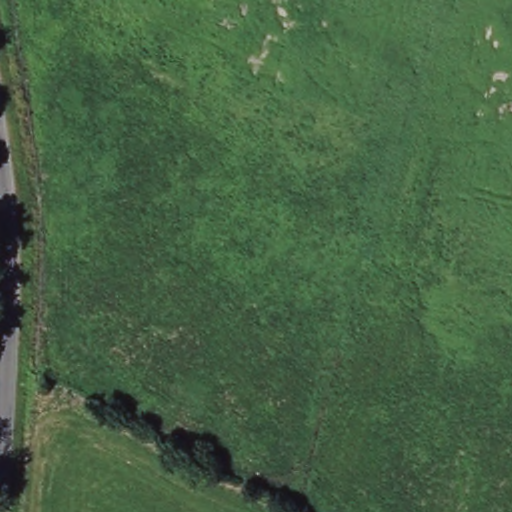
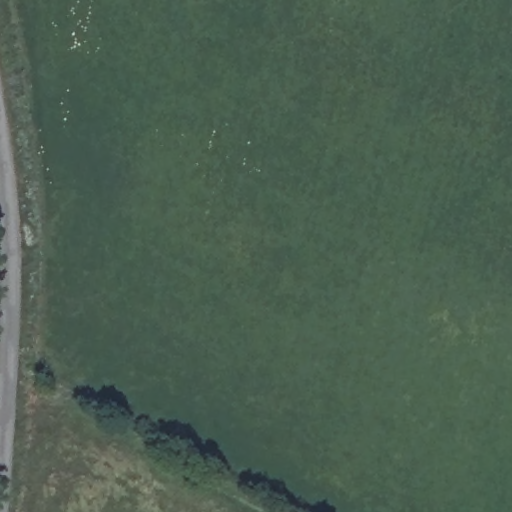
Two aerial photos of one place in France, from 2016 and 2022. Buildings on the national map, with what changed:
[]

